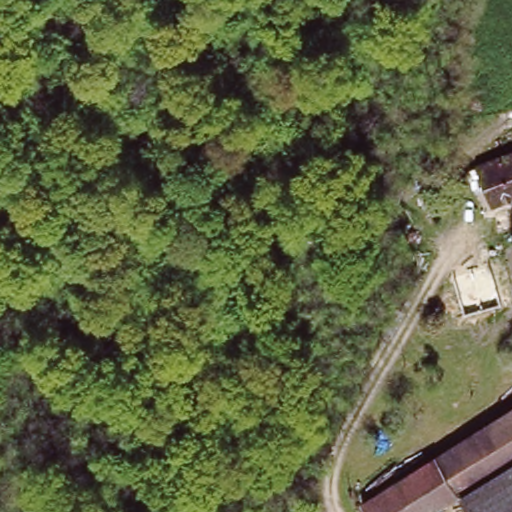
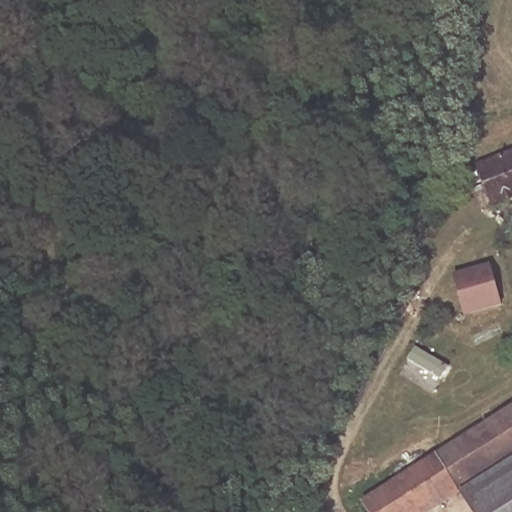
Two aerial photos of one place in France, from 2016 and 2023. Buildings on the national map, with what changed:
unchanged [(512,151),(512,198),(490,206),(483,187),(475,191),(471,182),(466,170),(475,166),(512,151)]
new [(495,263),(506,307),(463,315),(453,277),(495,263)]
demolished [(483,269),(493,307),(463,315),(453,277),(483,269)]
unchanged [(512,457),(459,490),(455,491),(433,459),(512,410),(512,457)]
unchanged [(512,512),(474,512),(459,490),(512,457),(512,512)]
unchanged [(368,512),(363,502),(433,459),(455,491),(422,512),(368,512)]

